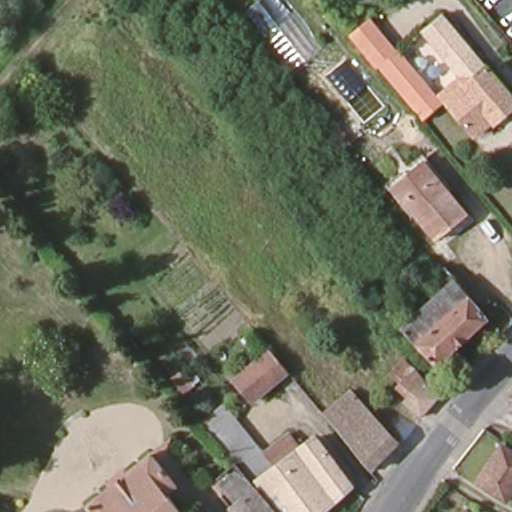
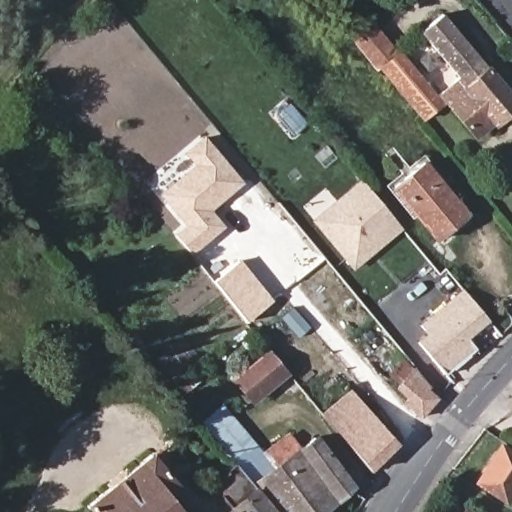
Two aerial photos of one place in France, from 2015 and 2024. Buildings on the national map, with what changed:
unchanged [(437,93),(460,74),(423,30),(445,11),(512,93),(512,106),(495,120),(491,116),(475,129),(447,96),(424,117),(379,65),(399,49),(437,93)]
unchanged [(373,18),(399,49),(379,65),(354,34),(373,18)]
new [(225,227),(192,254),(174,233),(185,225),(158,194),(194,165),(183,151),(204,135),(244,183),(211,209),(225,227)]
unchanged [(420,161),(465,215),(436,239),(392,184),(420,161)]
new [(352,270),(310,220),(360,178),(402,229),(352,270)]
new [(246,322),(213,281),(240,260),(273,301),(246,322)]
unchanged [(445,366),(411,327),(431,308),(459,284),(464,280),(497,319),(445,366)]
new [(291,306),(309,326),(300,334),(282,313),(291,306)]
demolished [(329,342),(310,359),(283,328),(302,311),(329,342)]
unchanged [(272,353),(288,372),(252,401),(234,380),(269,348),(272,353)]
unchanged [(424,378),(420,383),(436,397),(420,416),(403,402),(408,397),(395,384),(414,367),(424,378)]
unchanged [(350,391),(375,419),(397,441),(368,469),(323,414),(350,391)]
unchanged [(226,407),(277,469),(260,482),(258,485),(256,483),(239,463),(206,423),(226,407)]
unchanged [(319,439),(356,484),(325,512),(285,512),(260,482),(277,469),(315,439),(319,439)]
unchanged [(482,482),(505,445),(512,450),(512,498),(509,501),(482,482)]
unchanged [(164,489),(181,509),(178,512),(95,512),(86,501),(149,450),(174,481),(164,489)]
unchanged [(258,485),(280,512),(241,512),(214,482),(239,463),(256,483),(258,485)]
unchanged [(467,512),(464,512),(465,511),(467,512)]

